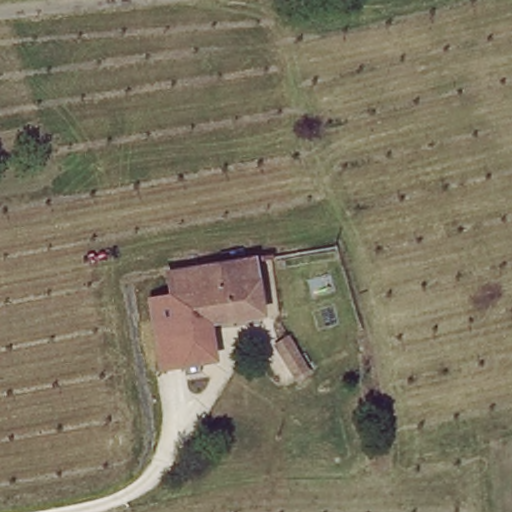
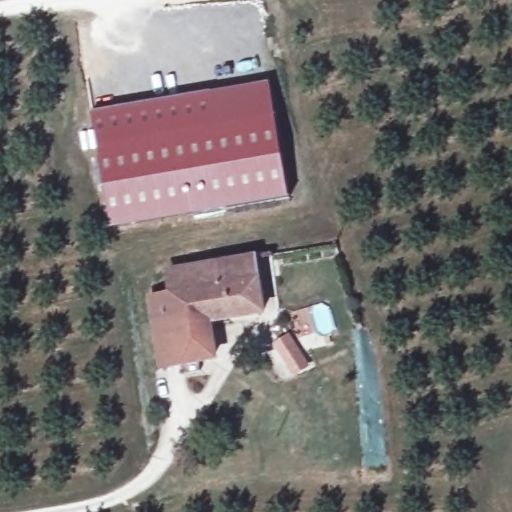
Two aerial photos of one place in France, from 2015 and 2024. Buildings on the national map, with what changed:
new [(93,146),(215,124),(210,91),(271,80),(291,198),(108,231),(93,146)]
unchanged [(162,365),(152,295),(172,292),(169,269),(257,257),(265,319),(212,328),(214,367),(182,370),(181,363),(162,365)]
demolished [(389,353),(362,355),(361,332),(380,331),(390,331),(389,353)]
unchanged [(310,367),(293,377),(272,344),(290,336),(310,367)]

